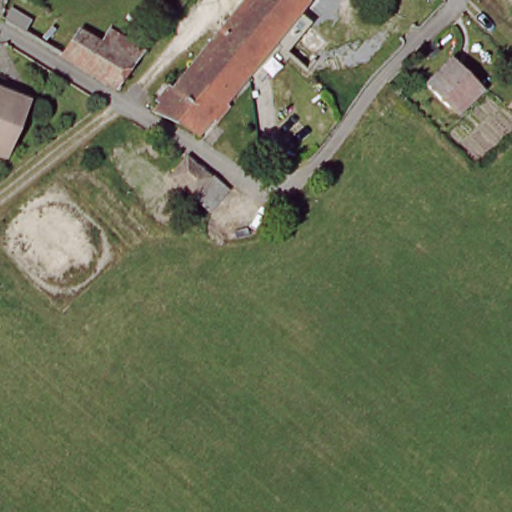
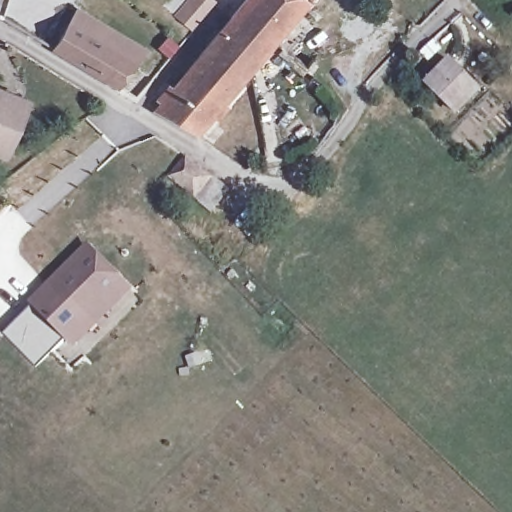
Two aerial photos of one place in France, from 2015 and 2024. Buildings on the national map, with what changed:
unchanged [(322,0),(313,11),(304,5),(198,133),(154,110),(244,0),(322,0)]
unchanged [(82,30),(106,45),(114,31),(149,52),(125,91),(65,55),(82,30)]
unchanged [(463,109),(456,101),(432,78),(453,56),(476,79),(484,87),(463,109)]
unchanged [(8,148),(0,145),(0,91),(25,101),(8,148)]
unchanged [(226,183),(209,203),(168,169),(185,149),(226,183)]
new [(73,348),(67,340),(36,367),(5,334),(33,306),(28,300),(89,241),(134,288),(73,348)]

